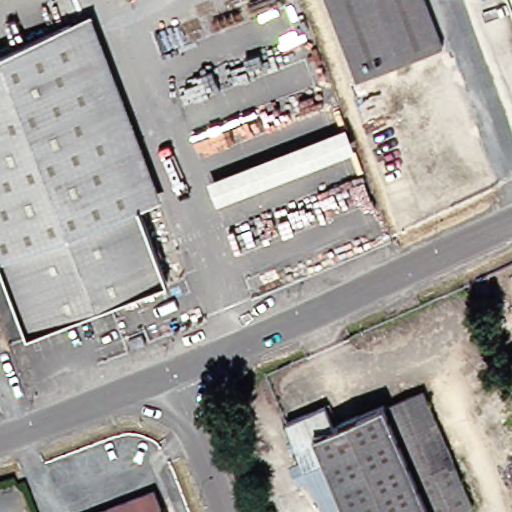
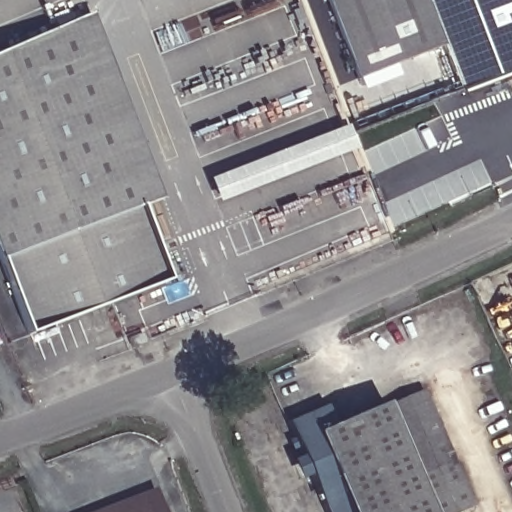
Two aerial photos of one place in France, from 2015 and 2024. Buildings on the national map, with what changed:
unchanged [(364,79),(333,0),(430,0),(448,46),(364,79)]
new [(511,0),(512,3),(512,75),(466,93),(448,46),(430,0),(511,0)]
unchanged [(512,0),(512,3),(511,0),(512,0)]
unchanged [(168,199),(146,208),(75,23),(97,14),(168,199)]
unchanged [(146,208),(174,282),(33,335),(0,247),(0,56),(75,23),(146,208)]
unchanged [(363,149),(223,205),(213,179),(354,129),(363,149)]
unchanged [(146,344),(133,349),(129,339),(143,334),(146,344)]
unchanged [(337,404),(346,424),(390,406),(391,408),(428,392),(479,507),(467,512),(331,512),(316,477),(305,481),(297,463),(308,458),(293,424),(337,404)]
unchanged [(167,512),(107,512),(159,492),(167,512)]

